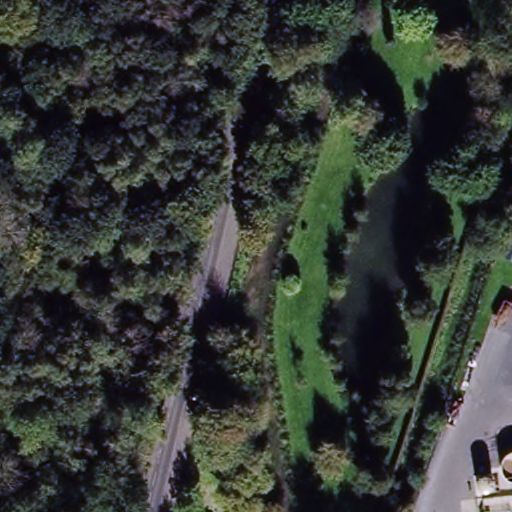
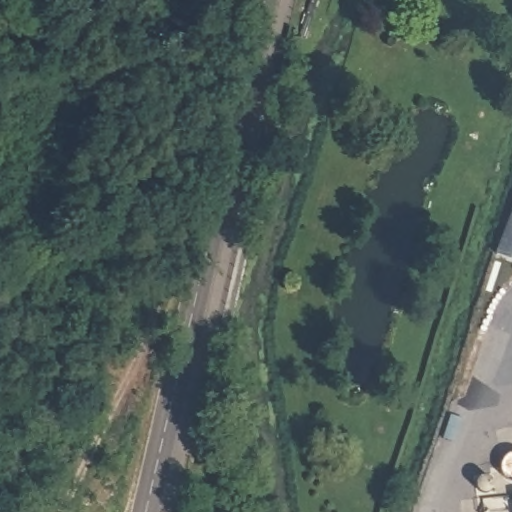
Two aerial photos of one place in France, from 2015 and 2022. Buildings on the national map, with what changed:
unchanged [(462,182),(466,172),(477,176),(473,186),(462,182)]
unchanged [(494,254),(512,206),(512,261),(494,254)]

